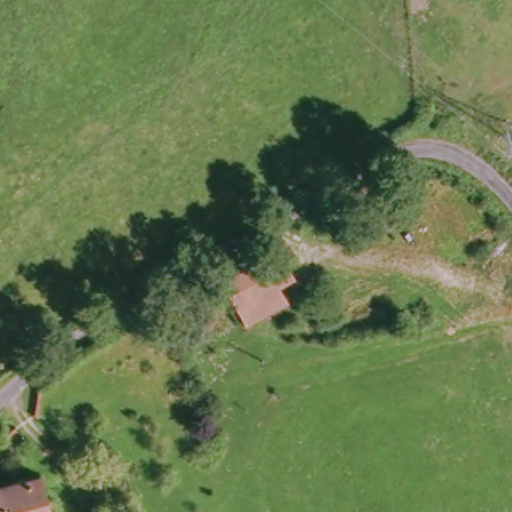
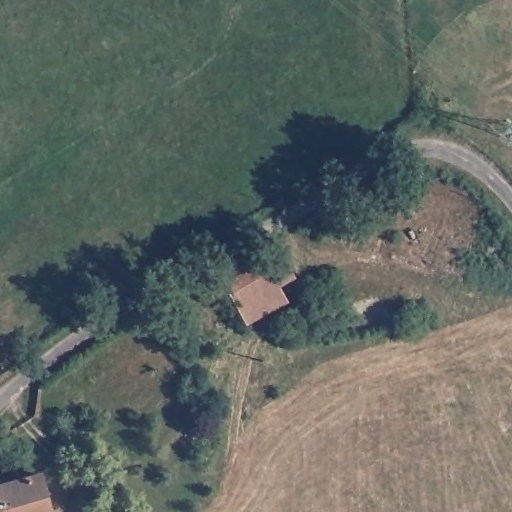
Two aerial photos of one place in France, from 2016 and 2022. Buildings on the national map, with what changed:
unchanged [(219,282),(277,248),(299,279),(283,290),(290,302),(248,327),(219,282)]
unchanged [(55,512),(0,512),(0,490),(45,477),(55,512)]

